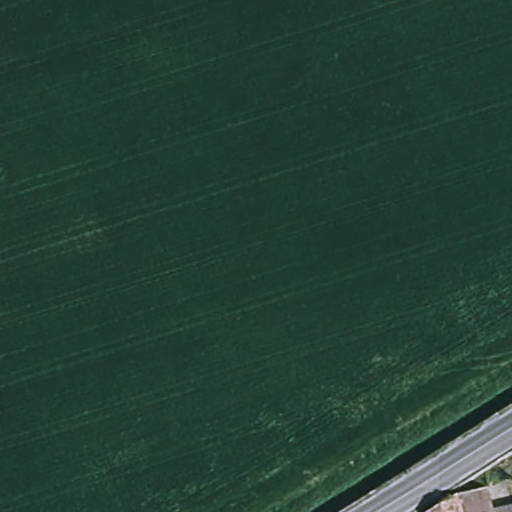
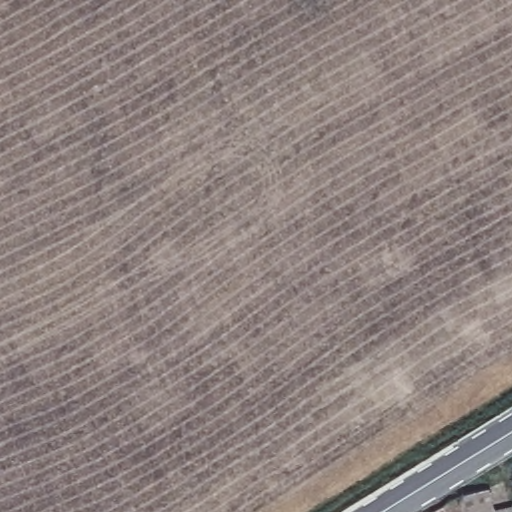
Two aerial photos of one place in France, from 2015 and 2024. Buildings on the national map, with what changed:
unchanged [(492,504),(493,512),(460,512),(456,494),(488,487),(492,504)]
unchanged [(460,512),(427,512),(456,494),(460,512)]
unchanged [(512,499),(512,512),(493,512),(492,504),(512,499)]

